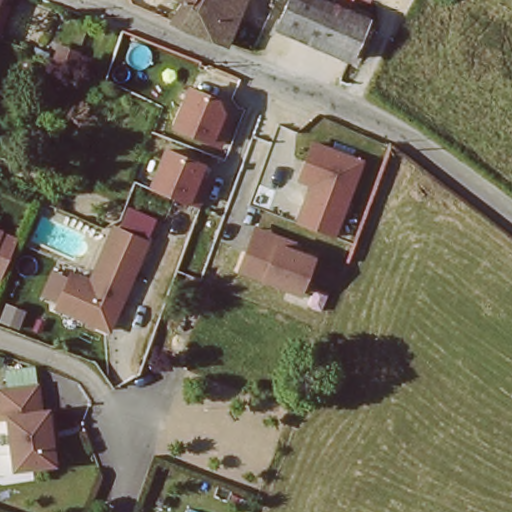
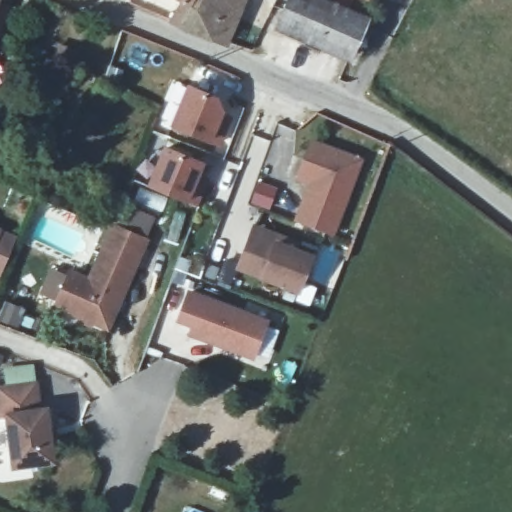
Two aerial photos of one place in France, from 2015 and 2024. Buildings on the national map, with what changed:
unchanged [(184,25),(172,20),(184,0),(200,0),(189,27),(184,25)]
unchanged [(223,40),(201,32),(199,31),(189,27),(200,0),(246,0),(228,43),(223,40)]
unchanged [(351,58),(282,28),(295,0),(330,0),(368,17),(369,18),(351,58)]
unchanged [(366,0),(369,0),(369,1),(366,0)]
unchanged [(225,110),(224,114),(236,119),(224,146),(215,141),(172,125),(188,82),(219,93),(225,110)]
unchanged [(214,161),(203,189),(151,168),(162,140),(214,161)]
unchanged [(336,235),(296,220),(308,181),(298,177),(312,141),(365,161),(336,235)]
unchanged [(114,228),(116,225),(126,203),(159,216),(149,240),(109,327),(57,304),(72,272),(91,280),(114,228)]
unchanged [(301,248),(314,253),(300,292),(238,270),(255,223),(303,240),(301,248)]
new [(270,319),(255,360),(187,337),(190,327),(174,322),(186,288),(270,319)]
unchanged [(54,436),(49,436),(52,460),(14,466),(7,416),(2,416),(0,401),(0,389),(35,384),(38,410),(46,409),(48,429),(53,428),(54,436)]

